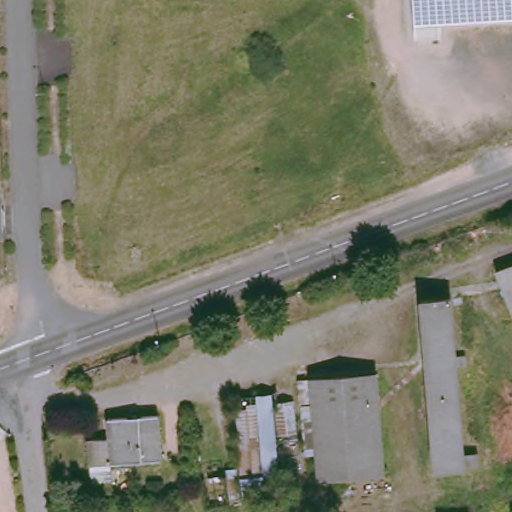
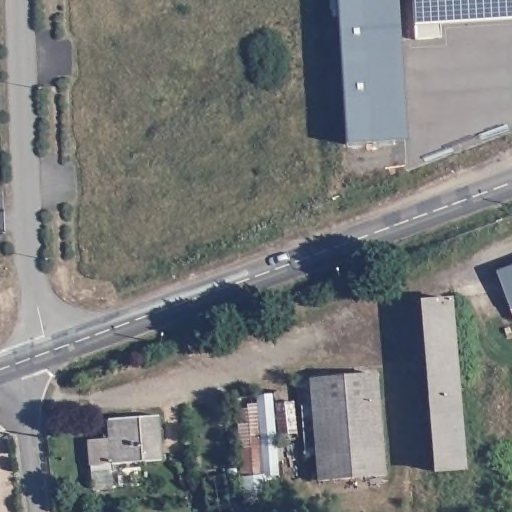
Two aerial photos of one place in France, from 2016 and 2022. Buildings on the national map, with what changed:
new [(400,140),(340,143),(332,0),(392,0),(400,140)]
unchanged [(509,16),(412,22),(410,0),(508,0),(509,16)]
unchanged [(512,268),(512,315),(497,274),(512,268)]
unchanged [(459,437),(460,440),(460,443),(462,445),(470,447),(472,465),(432,466),(418,295),(446,293),(452,349),(460,349),(462,365),(454,365),(459,437)]
unchanged [(384,473),(325,476),(318,369),(376,366),(384,473)]
unchanged [(277,472),(264,473),(265,492),(244,493),(235,393),(270,390),(277,472)]
unchanged [(292,432),(277,433),(275,401),(291,399),(292,432)]
unchanged [(160,459),(112,463),(109,416),(157,412),(160,459)]

